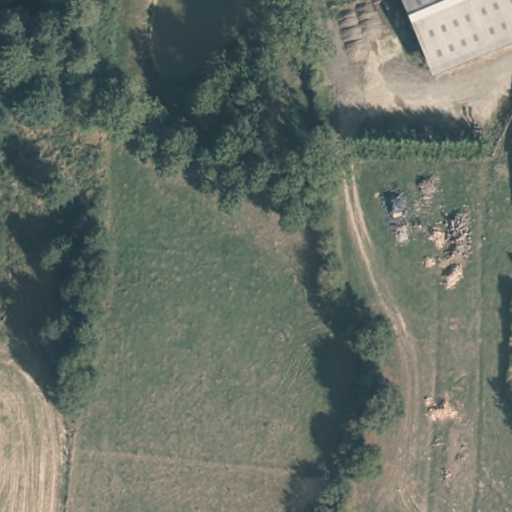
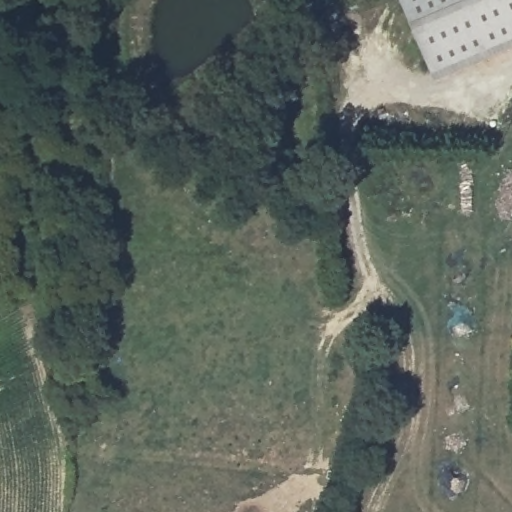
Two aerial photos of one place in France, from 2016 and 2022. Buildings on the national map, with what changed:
unchanged [(512,38),(428,74),(400,0),(512,0),(512,38)]

